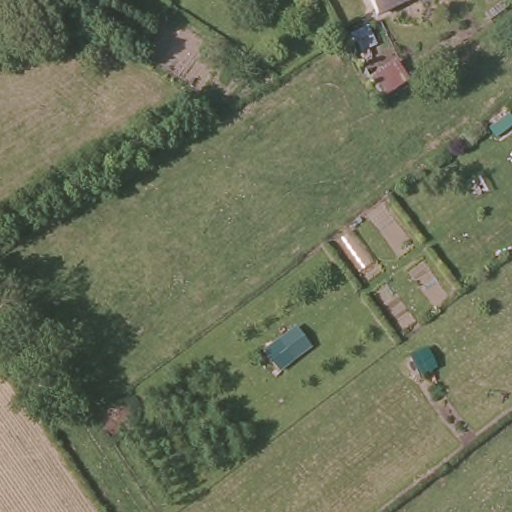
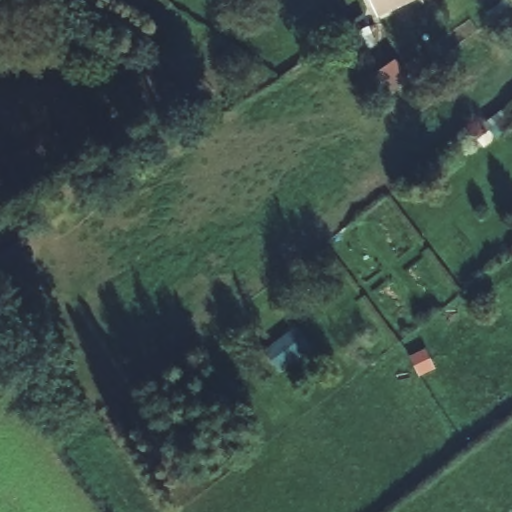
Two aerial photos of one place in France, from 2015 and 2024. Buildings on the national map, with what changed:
unchanged [(371,0),(412,0),(379,17),(371,0)]

